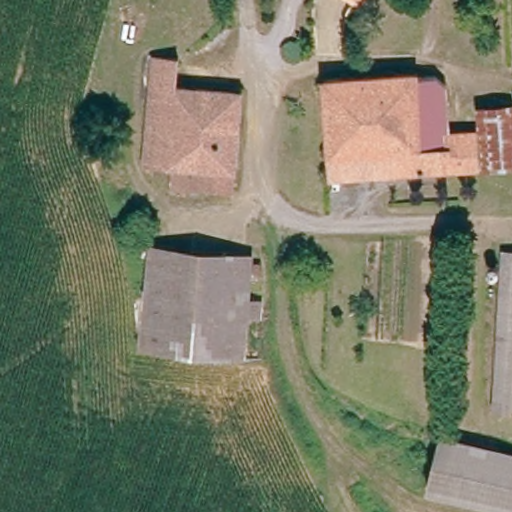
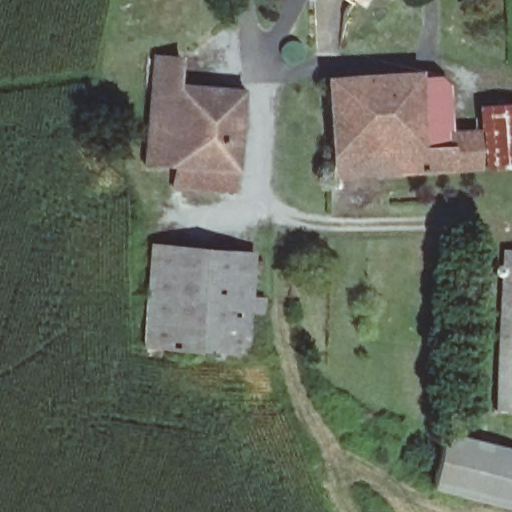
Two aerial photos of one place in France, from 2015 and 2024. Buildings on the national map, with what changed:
unchanged [(351,0),(359,0),(357,4),(351,0)]
unchanged [(176,59),(174,86),(241,91),(232,192),(172,187),(174,169),(148,166),(155,59),(176,59)]
unchanged [(330,183),(322,78),(416,74),(417,78),(435,78),(447,86),(448,135),(475,134),(477,171),(330,183)]
unchanged [(479,109),(512,107),(512,169),(484,170),(479,109)]
unchanged [(252,352),(204,348),(145,343),(153,247),(260,256),(252,352)]
unchanged [(512,414),(492,413),(501,250),(512,251),(512,414)]
unchanged [(512,508),(429,487),(443,434),(512,452),(512,508)]

